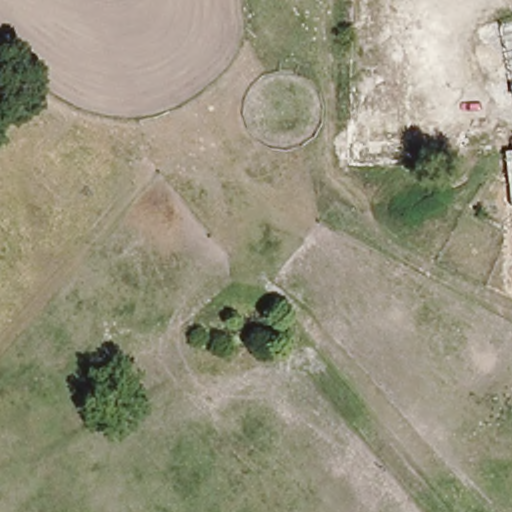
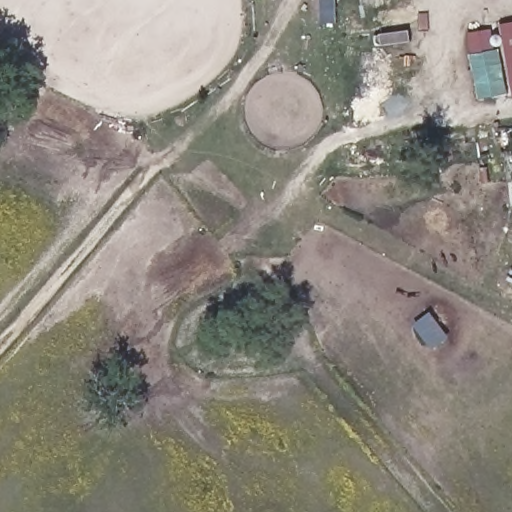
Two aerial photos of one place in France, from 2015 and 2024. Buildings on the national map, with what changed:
demolished [(512,16),(512,97),(497,19),(512,16)]
new [(512,23),(512,85),(501,25),(512,23)]
new [(468,34),(493,28),(507,94),(482,99),(468,34)]

